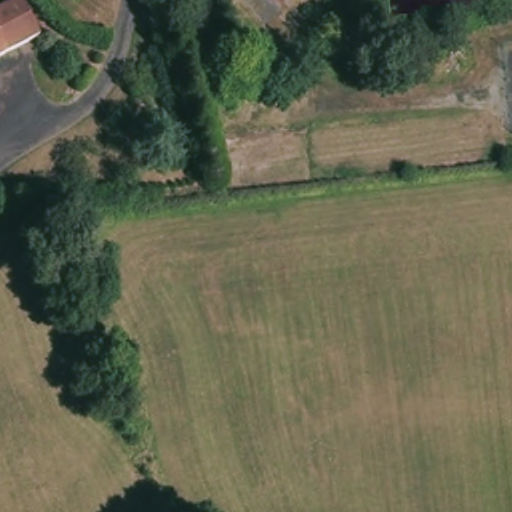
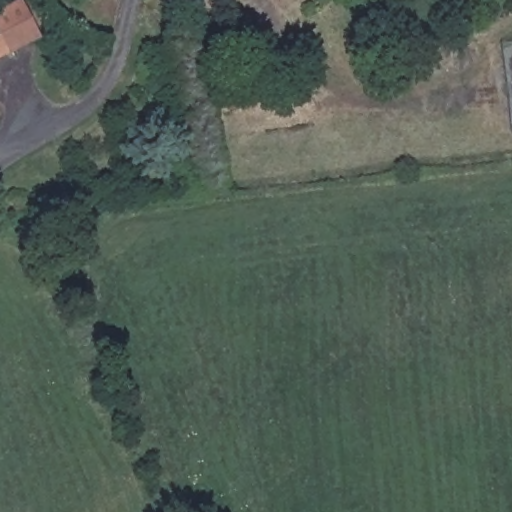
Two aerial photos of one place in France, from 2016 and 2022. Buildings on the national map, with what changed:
unchanged [(0,58),(0,7),(14,0),(18,0),(43,35),(0,58)]

